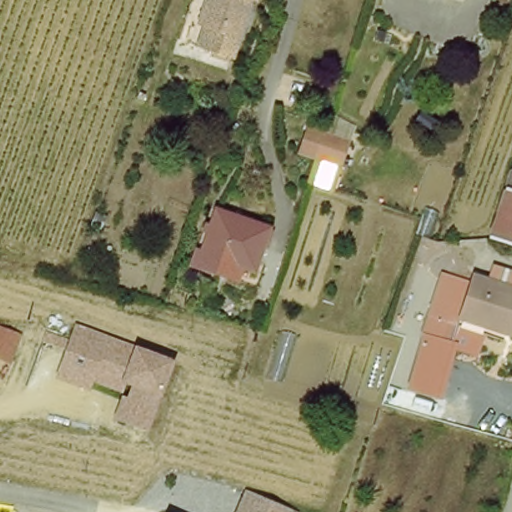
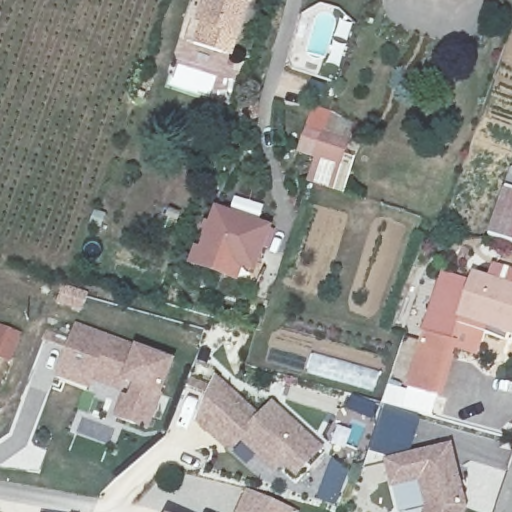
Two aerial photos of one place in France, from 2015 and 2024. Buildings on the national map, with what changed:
unchanged [(241,11),(230,38),(221,33),(217,45),(193,36),(204,6),(213,7),(216,0),(253,0),(248,13),(241,11)]
unchanged [(333,195),(303,184),(311,159),(295,155),(304,125),(326,133),(333,113),(355,121),(333,195)]
unchanged [(493,239),(512,169),(512,246),(493,239)]
unchanged [(273,224),(258,271),(206,253),(221,206),(273,224)]
unchanged [(511,285),(509,290),(512,291),(512,342),(498,339),(501,325),(487,321),(463,313),(459,324),(431,315),(443,267),(511,285)]
unchanged [(431,315),(459,324),(463,313),(487,321),(477,352),(424,337),(431,315)]
unchanged [(76,323),(176,361),(149,429),(115,419),(123,395),(128,396),(132,386),(126,384),(123,393),(95,383),(93,391),(56,377),(76,323)]
new [(10,360),(0,356),(0,327),(19,334),(10,360)]
unchanged [(442,399),(408,388),(424,337),(458,346),(442,399)]
new [(264,458),(243,439),(236,447),(228,447),(212,433),(213,431),(201,419),(218,378),(261,418),(274,404),(322,448),(298,475),(283,461),(276,469),(264,458)]
new [(450,446),(465,508),(464,512),(427,512),(429,507),(421,478),(393,485),(388,461),(450,446)]
new [(248,488),(300,512),(237,512),(248,488)]
demolished [(279,503),(277,512),(237,512),(244,491),(279,503)]

